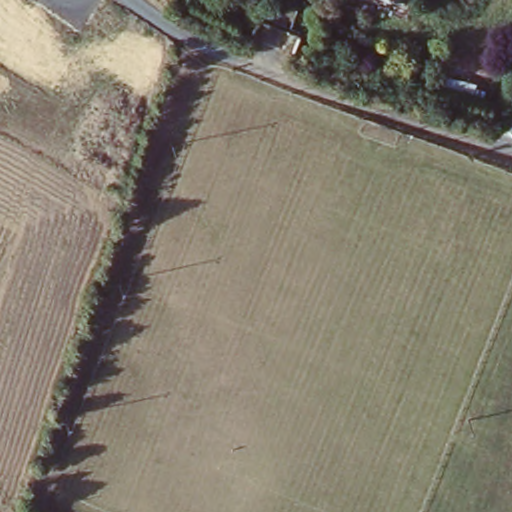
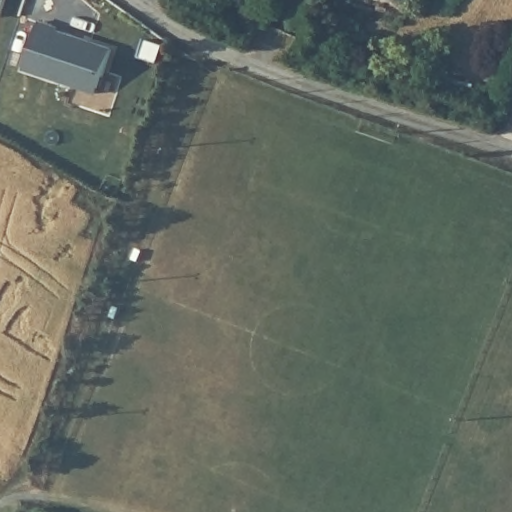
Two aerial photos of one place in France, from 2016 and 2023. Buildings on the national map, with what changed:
new [(1,15),(0,15),(0,0),(6,0),(1,15)]
new [(39,21),(114,45),(100,90),(25,66),(39,21)]

